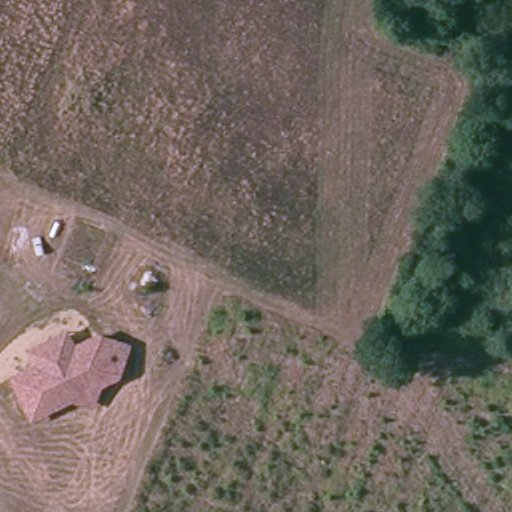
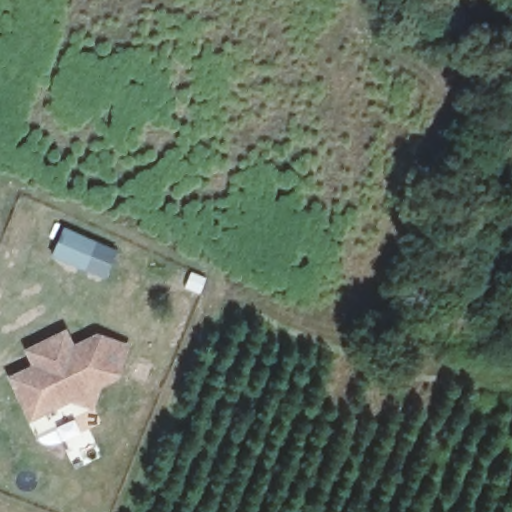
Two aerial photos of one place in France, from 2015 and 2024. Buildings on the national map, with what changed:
demolished [(81,264),(51,254),(65,215),(95,225),(81,264)]
new [(117,250),(105,278),(51,257),(64,225),(117,250)]
unchanged [(70,395),(32,417),(9,379),(32,367),(24,352),(59,332),(69,345),(89,334),(119,342),(111,373),(93,383),(89,403),(70,395)]

